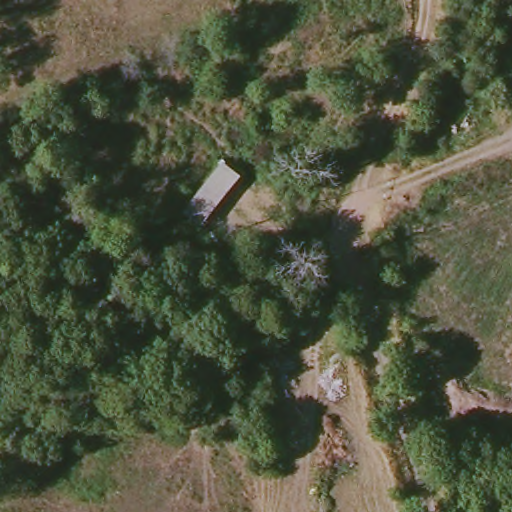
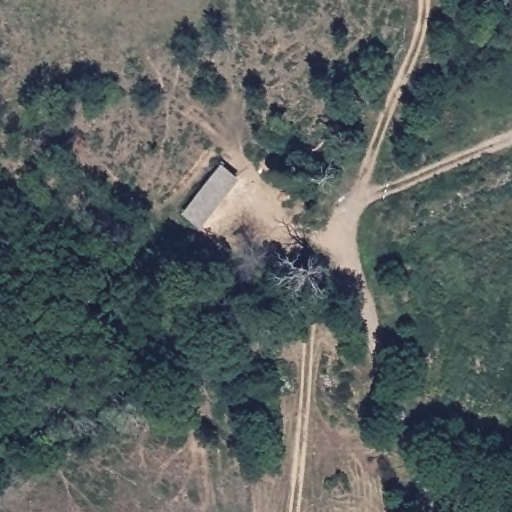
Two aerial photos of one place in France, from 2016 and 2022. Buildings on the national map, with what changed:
unchanged [(244,178),(203,229),(182,214),(222,163),(244,178)]

